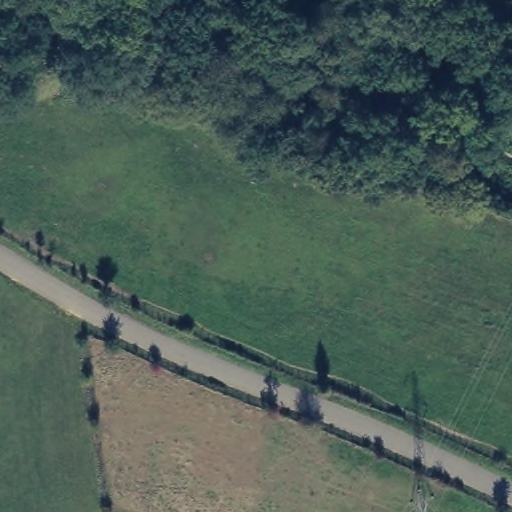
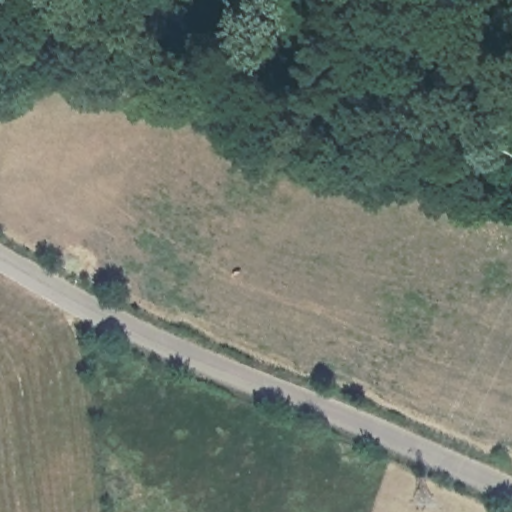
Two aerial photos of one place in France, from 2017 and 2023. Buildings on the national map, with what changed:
[]

